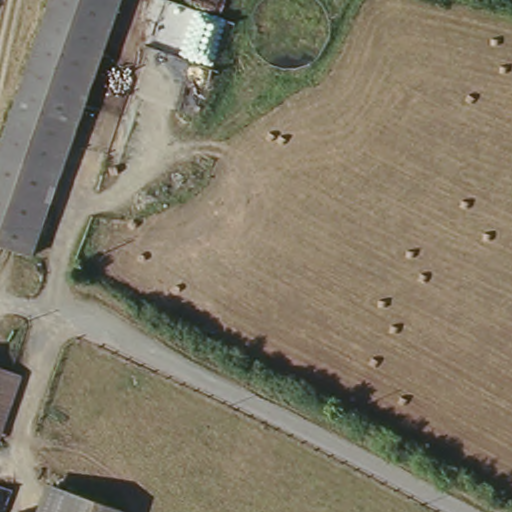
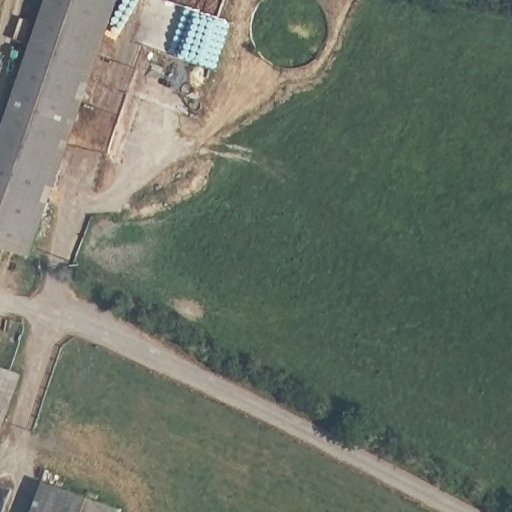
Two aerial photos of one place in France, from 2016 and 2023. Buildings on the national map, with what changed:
unchanged [(31,46),(47,0),(120,0),(75,126),(26,252),(0,242),(0,127),(31,46)]
unchanged [(24,374),(0,435),(0,366),(6,368),(24,374)]
unchanged [(122,512),(21,512),(36,474),(123,509),(122,512)]

